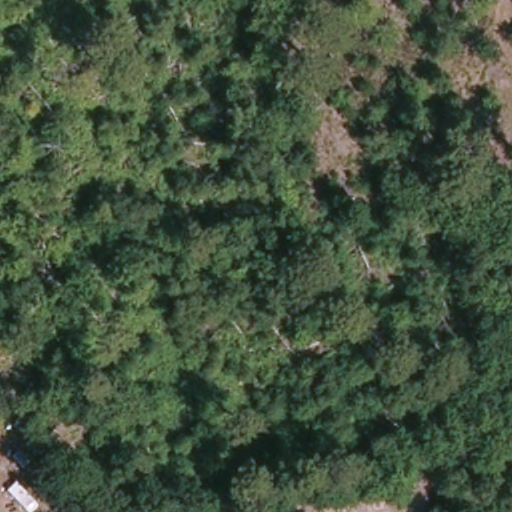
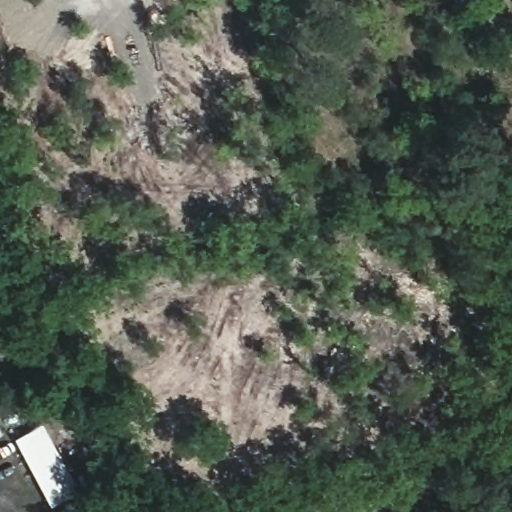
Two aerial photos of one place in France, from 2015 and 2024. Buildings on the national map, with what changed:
new [(12,441),(41,425),(76,494),(48,510),(12,441)]

